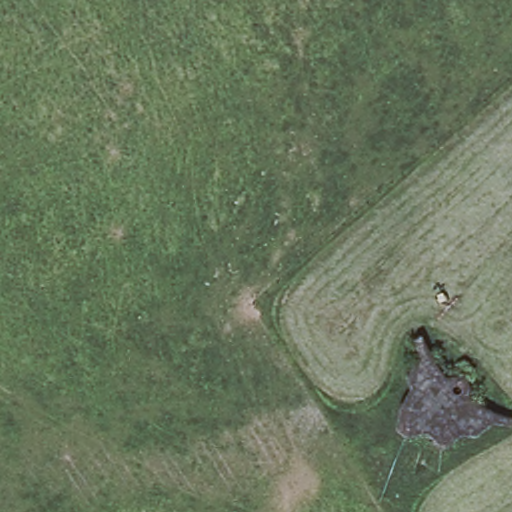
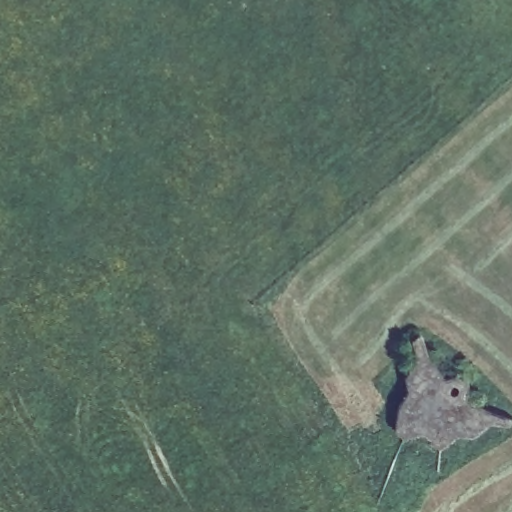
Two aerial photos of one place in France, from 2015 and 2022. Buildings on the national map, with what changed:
unchanged [(485,431),(472,435),(454,436),(443,442),(432,442),(425,429),(415,432),(397,432),(390,423),(388,412),(401,394),(403,381),(413,363),(412,344),(415,333),(444,378),(450,377),(455,377),(463,379),(468,383),(469,392),(465,401),(505,420),(485,431)]

